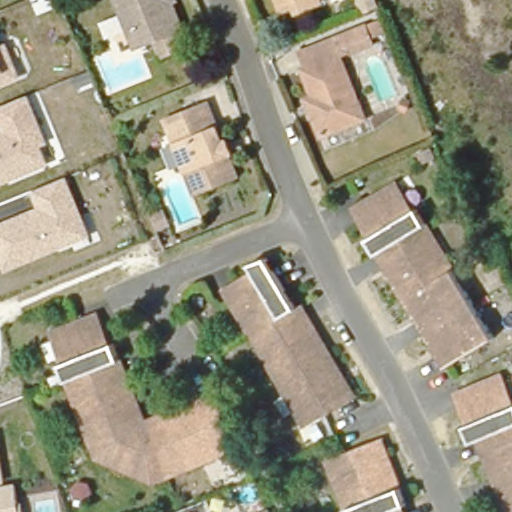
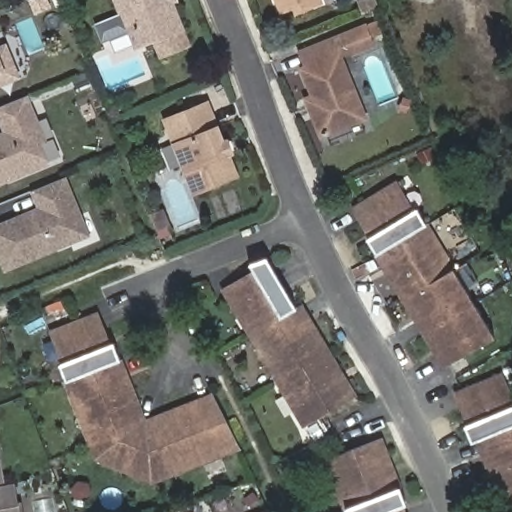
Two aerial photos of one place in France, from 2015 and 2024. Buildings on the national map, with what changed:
unchanged [(99,15),(123,5),(121,0),(175,0),(182,16),(189,34),(166,43),(159,25),(135,34),(131,24),(106,34),(99,15)]
unchanged [(295,9),(293,3),(280,8),(277,0),(315,0),(295,9)]
unchanged [(377,6),(361,12),(356,0),(375,0),(377,6)]
unchanged [(314,93),(303,65),(305,64),(298,48),(344,29),(344,30),(366,21),(374,39),(352,48),(351,46),(339,51),(365,113),(322,131),(312,107),(308,96),(314,93)]
unchanged [(0,87),(0,44),(8,41),(23,78),(0,87)]
unchanged [(50,166),(0,186),(0,133),(4,132),(0,122),(0,107),(30,96),(51,143),(43,145),(50,166)]
unchanged [(195,191),(166,120),(209,103),(225,142),(228,141),(233,151),(229,152),(238,174),(195,191)]
unchanged [(419,324),(409,307),(383,263),(372,245),(363,230),(368,227),(351,199),(391,174),(407,203),(412,200),(429,228),(439,244),(449,262),(461,281),(470,295),(481,314),(490,329),(445,356),(440,360),(429,341),(419,324)]
unchanged [(6,274),(0,260),(0,223),(36,210),(30,191),(66,177),(94,238),(6,274)]
unchanged [(150,215),(161,210),(169,226),(158,231),(150,215)]
unchanged [(270,367),(260,350),(252,336),(242,319),(226,292),(255,273),(250,265),(267,259),(297,309),(303,305),(314,323),(338,363),(348,380),(357,396),(306,428),(296,411),(286,395),(270,367)]
unchanged [(87,441),(75,410),(66,389),(56,361),(60,359),(48,329),(91,311),(104,342),(110,339),(116,355),(124,374),(135,403),(141,417),(158,411),(188,398),(208,390),(211,396),(236,442),(216,450),(197,458),(163,472),(149,478),(91,453),(87,441)]
unchanged [(485,457),(477,436),(472,438),(465,421),(469,419),(457,389),(502,372),(512,396),(512,508),(507,510),(501,494),(492,474),(485,457)]
unchanged [(387,456),(394,475),(406,505),(401,508),(402,512),(346,512),(340,495),(333,476),(327,462),(381,440),(387,456)]
unchanged [(20,506),(24,506),(25,512),(0,512),(0,454),(6,484),(15,483),(20,506)]

